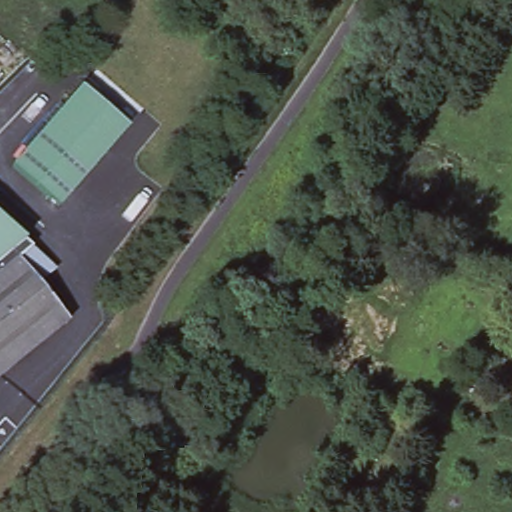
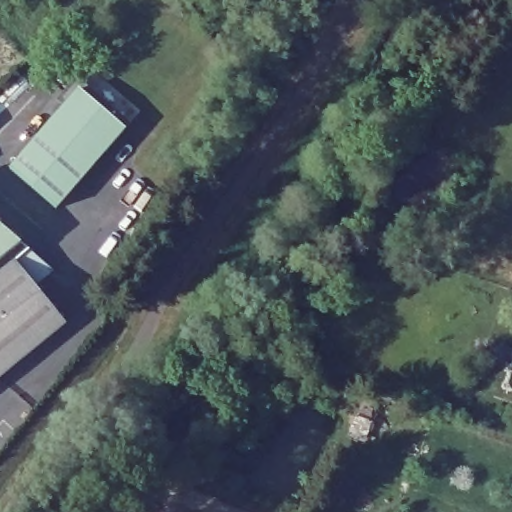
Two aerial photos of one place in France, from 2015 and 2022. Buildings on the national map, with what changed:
unchanged [(129,124),(58,209),(10,170),(80,85),(129,124)]
unchanged [(51,268),(34,281),(66,321),(0,374),(0,224),(29,249),(51,268)]

